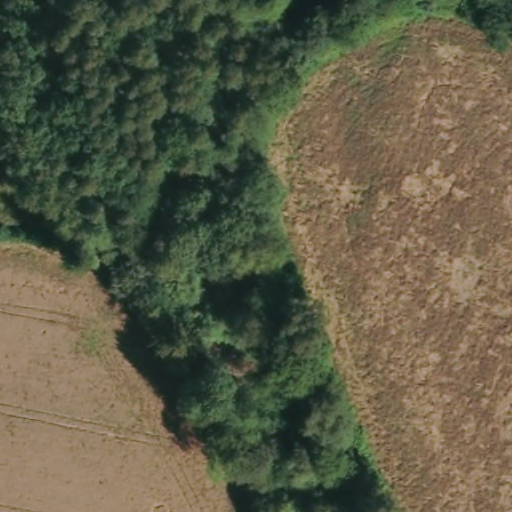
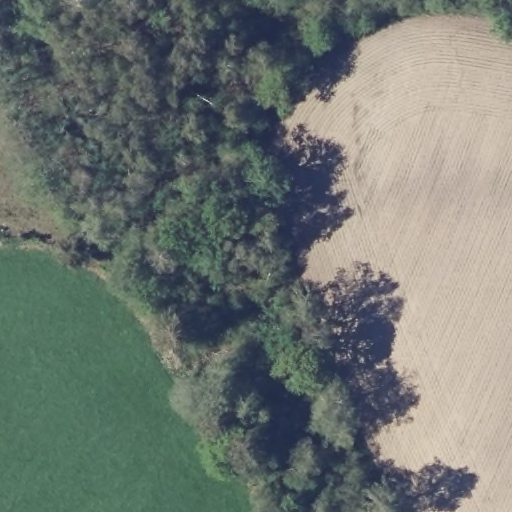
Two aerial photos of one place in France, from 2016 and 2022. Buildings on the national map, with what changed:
unchanged [(20,243),(6,245),(5,235),(20,232),(20,243)]

